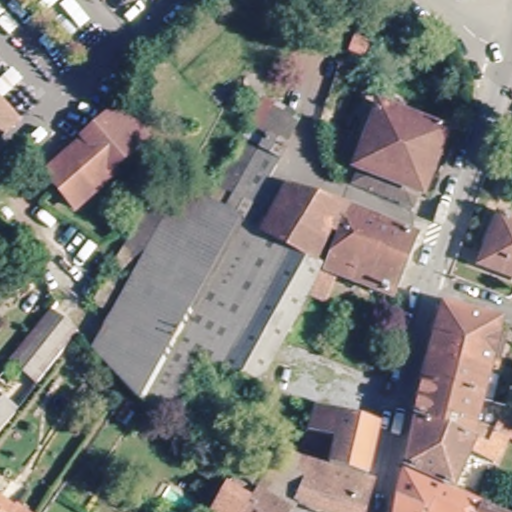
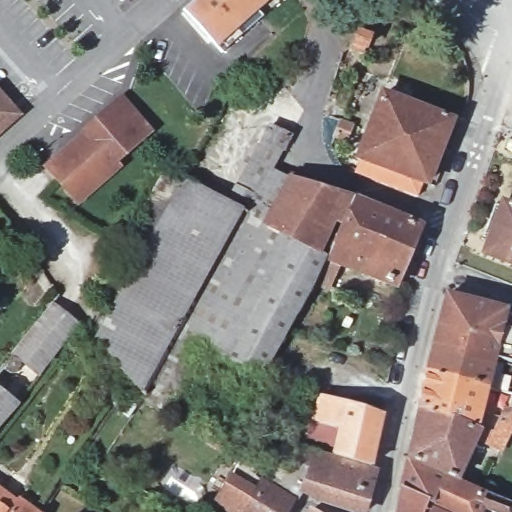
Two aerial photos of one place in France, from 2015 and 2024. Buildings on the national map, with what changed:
new [(183,12),(197,0),(266,0),(214,48),(183,12)]
unchanged [(359,49),(348,43),(355,27),(367,32),(359,49)]
unchanged [(356,165),(362,150),(359,149),(382,89),(448,114),(427,174),(424,173),(419,189),(356,165)]
unchanged [(0,133),(0,114),(3,111),(0,108),(0,90),(21,114),(0,133)]
unchanged [(115,102),(141,131),(109,160),(82,130),(115,102)]
unchanged [(0,114),(0,108),(3,111),(0,114)]
unchanged [(128,388),(94,342),(143,250),(184,174),(228,194),(269,119),(275,109),(296,120),(290,129),(274,163),(293,171),(267,222),(233,277),(192,342),(204,349),(175,404),(181,407),(177,415),(170,411),(128,388)]
unchanged [(111,164),(73,200),(43,166),(82,130),(109,160),(111,164)]
unchanged [(263,371),(225,359),(204,349),(192,342),(233,277),(267,222),(293,171),(352,196),(340,223),(334,219),(320,252),(325,254),(287,328),(263,371)]
unchanged [(343,224),(352,196),(419,224),(409,253),(343,224)]
unchanged [(484,250),(502,204),(512,207),(512,262),(484,250)]
unchanged [(395,284),(329,258),(343,224),(409,253),(397,283),(395,284)]
unchanged [(330,290),(319,287),(325,269),(335,272),(330,290)]
unchanged [(443,293),(499,308),(511,313),(504,334),(494,332),(490,344),(512,349),(512,364),(488,358),(431,341),(443,293)]
unchanged [(54,298),(81,319),(42,367),(23,352),(20,359),(14,364),(9,363),(5,357),(15,345),(54,298)]
unchanged [(431,341),(488,358),(481,384),(424,368),(431,341)]
unchanged [(424,368),(481,384),(477,398),(499,403),(487,431),(414,404),(424,368)]
unchanged [(0,413),(0,392),(10,401),(0,413)]
unchanged [(332,452),(337,427),(312,419),(319,394),(380,411),(369,463),(332,452)]
unchanged [(499,403),(507,407),(512,409),(512,423),(508,421),(496,447),(470,436),(453,478),(402,457),(414,404),(487,431),(499,403)]
unchanged [(216,489),(238,457),(255,468),(257,465),(261,459),(265,462),(269,464),(275,454),(294,463),(299,454),(291,449),(294,444),(302,446),(309,424),(319,426),(314,449),(331,455),(369,466),(376,469),(363,511),(324,499),(302,488),(293,496),(284,512),(252,512),(236,502),(216,489)]
unchanged [(402,457),(453,478),(474,488),(482,479),(489,484),(484,491),(511,504),(507,512),(498,512),(481,504),(477,512),(391,512),(396,479),(402,457)]
unchanged [(31,512),(0,512),(0,490),(10,497),(31,512)]
unchanged [(232,506),(233,507),(241,512),(228,512),(232,506)]

